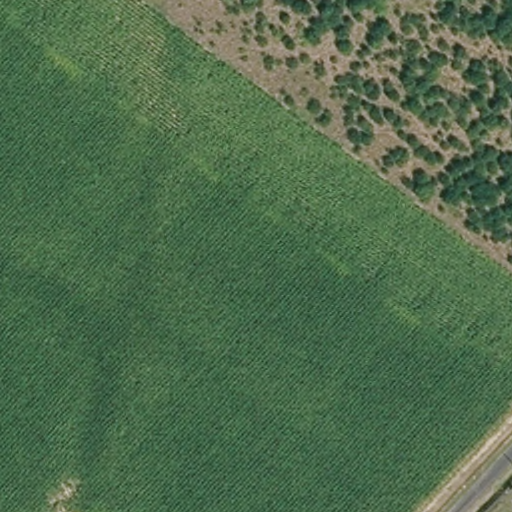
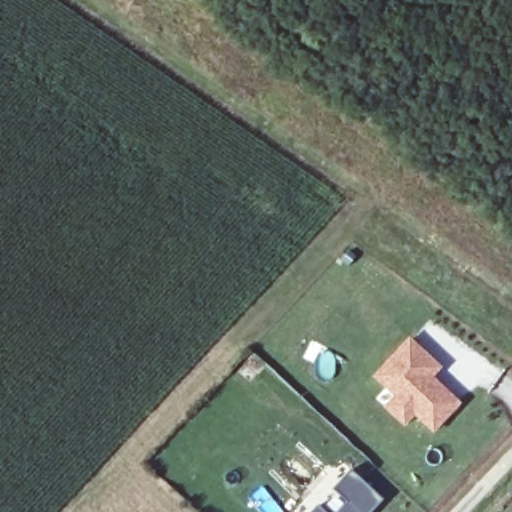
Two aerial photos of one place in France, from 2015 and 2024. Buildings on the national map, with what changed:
new [(444,367),(434,378),(462,403),(433,435),(416,417),(406,428),(383,407),(393,397),(372,377),(409,336),(444,367)]
new [(334,490),(350,472),(381,500),(371,512),(337,512),(346,502),(334,490)]
new [(322,512),(314,512),(317,508),(322,512)]

